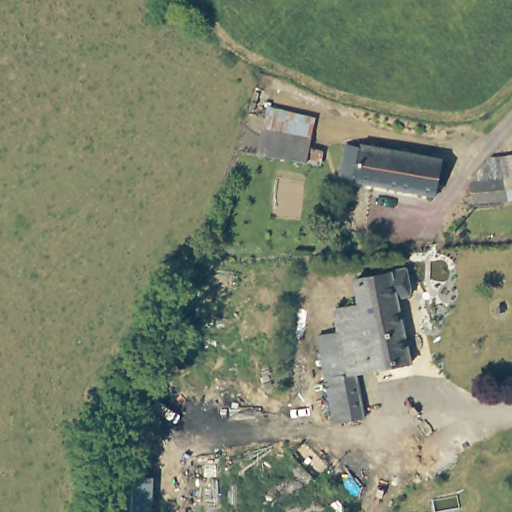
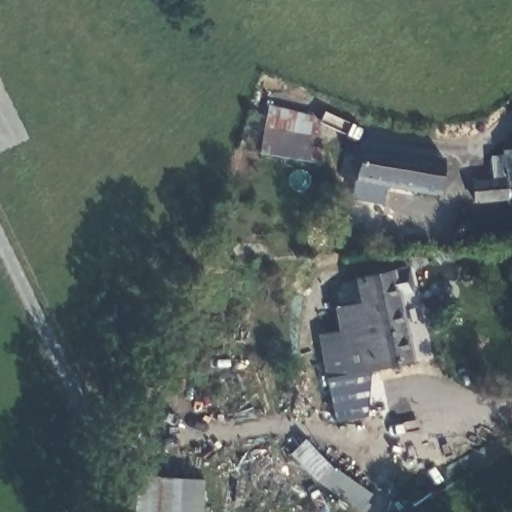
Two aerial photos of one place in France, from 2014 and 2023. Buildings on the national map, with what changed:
unchanged [(262,154),(267,126),(271,105),(319,115),(314,137),(311,161),(262,154)]
unchanged [(347,182),(350,149),(367,155),(369,148),(400,151),(398,188),(347,182)]
unchanged [(447,157),(443,193),(398,188),(400,151),(447,157)]
unchanged [(476,179),(497,155),(512,154),(512,200),(478,203),(476,179)]
unchanged [(326,355),(321,336),(341,331),(337,315),(340,314),(342,313),(363,307),(356,282),(376,278),(395,274),(416,361),(363,374),(373,417),(363,420),(341,425),(332,382),(326,355)]
new [(203,479),(200,512),(152,512),(156,475),(203,479)]

